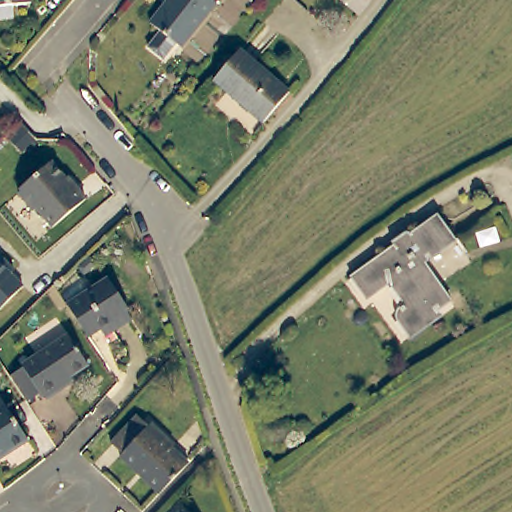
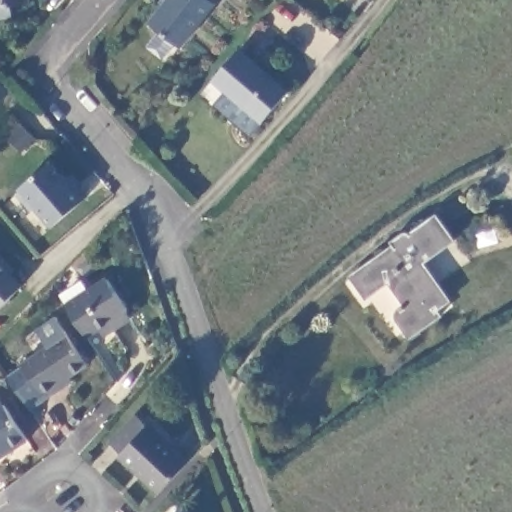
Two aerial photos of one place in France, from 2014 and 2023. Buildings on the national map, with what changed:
unchanged [(0,7),(0,0),(32,0),(32,3),(0,7)]
unchanged [(179,45),(167,59),(153,47),(163,33),(153,25),(173,0),(224,0),(184,49),(179,45)]
unchanged [(368,0),(370,0),(369,1),(368,0)]
unchanged [(263,124),(214,80),(240,50),(289,94),(263,124)]
unchanged [(51,224),(35,206),(31,209),(18,195),(19,191),(50,164),(69,185),(71,184),(82,196),(51,224)]
unchanged [(398,321),(397,316),(399,312),(401,308),(404,305),(389,282),(367,297),(352,277),(377,258),(388,256),(396,251),(391,243),(405,233),(411,235),(437,216),(454,241),(423,263),(439,285),(449,301),(436,310),(440,317),(410,338),(398,321)]
unchanged [(0,262),(22,285),(0,307),(0,262)]
unchanged [(84,289),(102,278),(124,308),(121,311),(125,317),(99,332),(95,327),(84,335),(56,296),(76,276),(84,289)]
unchanged [(93,365),(76,377),(78,382),(53,398),(50,394),(48,396),(46,393),(32,401),(16,376),(29,367),(27,365),(73,334),(93,365)]
unchanged [(13,456),(10,453),(0,461),(0,401),(29,444),(13,456)]
unchanged [(130,458),(119,447),(144,419),(155,431),(158,427),(181,450),(179,452),(194,467),(166,497),(127,462),(130,458)]

